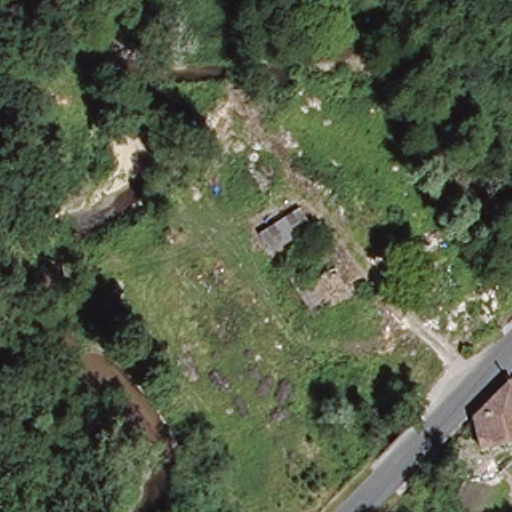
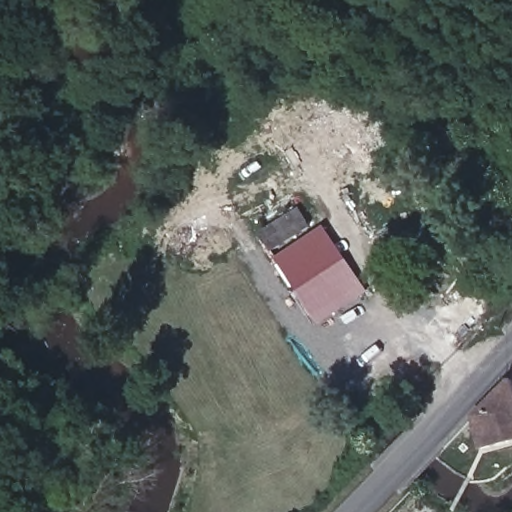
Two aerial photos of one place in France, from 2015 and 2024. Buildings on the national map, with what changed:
unchanged [(304,229),(267,252),(255,232),(292,209),(304,229)]
new [(319,325),(274,258),(324,225),(368,292),(319,325)]
demolished [(281,264),(316,241),(333,266),(297,289),(281,264)]
unchanged [(512,439),(478,449),(469,418),(495,391),(506,380),(512,401),(512,439)]

